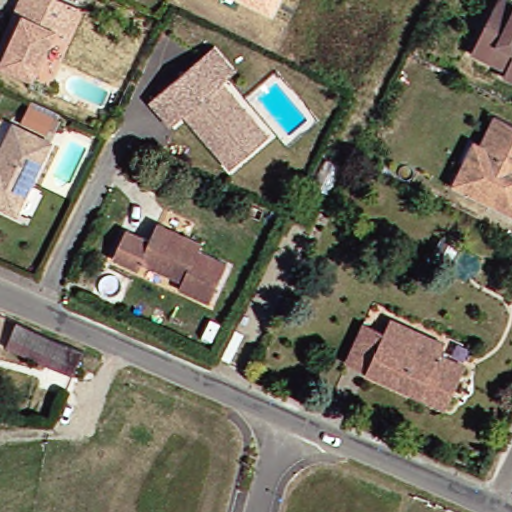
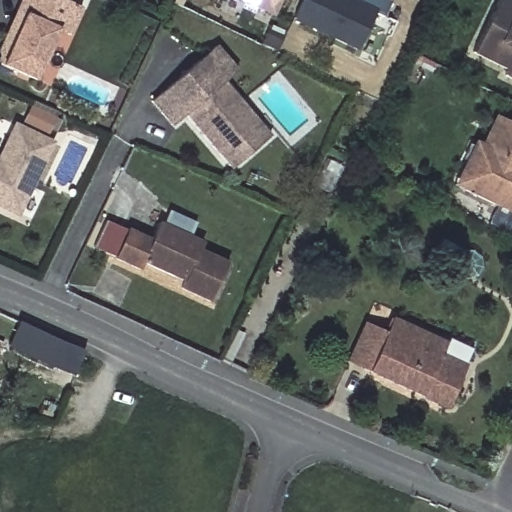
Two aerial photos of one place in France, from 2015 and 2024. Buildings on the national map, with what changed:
unchanged [(34,80),(0,65),(0,43),(4,35),(17,6),(20,0),(63,0),(66,1),(34,80)]
unchanged [(239,0),(280,0),(273,17),(239,0)]
new [(351,0),(363,5),(365,0),(391,0),(395,2),(387,19),(379,15),(362,50),(298,20),(307,0),(351,0)]
unchanged [(504,77),(507,71),(472,54),(498,0),(504,0),(512,4),(512,81),(504,77)]
unchanged [(66,1),(80,7),(67,35),(56,30),(66,1)]
unchanged [(232,70),(219,80),(257,126),(217,157),(180,111),(166,122),(146,97),(212,44),(232,70)]
unchanged [(458,190),(449,185),(470,143),(476,146),(491,116),(512,127),(512,217),(458,190)]
unchanged [(48,142),(14,214),(0,207),(0,147),(11,124),(48,142)]
unchanged [(198,242),(195,249),(223,262),(205,302),(175,289),(178,281),(137,262),(134,270),(109,259),(123,229),(146,240),(154,222),(198,242)]
unchanged [(436,355),(459,365),(440,407),(342,362),(359,325),(380,334),(386,319),(441,344),(436,355)]
unchanged [(63,343),(85,351),(74,375),(8,346),(18,323),(63,343)]
unchanged [(497,400),(485,425),(470,418),(482,392),(497,400)]

